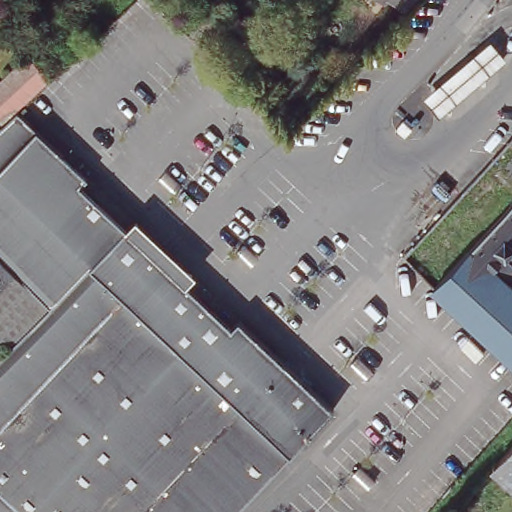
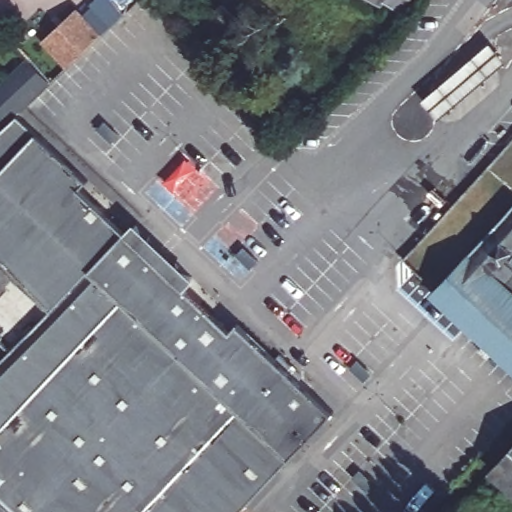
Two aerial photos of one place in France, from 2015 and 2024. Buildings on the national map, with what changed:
new [(87,10),(98,0),(113,0),(126,14),(68,67),(43,40),(81,4),(87,10)]
unchanged [(408,7),(401,0),(414,0),(408,7)]
unchanged [(454,121),(433,101),(494,37),(512,56),(512,58),(454,121)]
unchanged [(19,72),(21,72),(38,57),(54,76),(7,121),(0,114),(0,91),(19,72)]
unchanged [(38,133),(88,177),(81,187),(126,231),(137,221),(196,277),(188,288),(233,330),(240,321),(333,409),(292,454),(238,512),(0,512),(0,361),(13,348),(22,339),(42,319),(53,308),(28,282),(0,255),(0,132),(19,115),(38,133)]
unchanged [(473,249),(512,208),(512,278),(511,279),(512,281),(512,367),(433,293),(473,249)]
unchanged [(28,282),(53,308),(42,319),(22,339),(13,348),(0,335),(0,255),(28,282)]
unchanged [(512,452),(512,477),(500,466),(512,452)]

